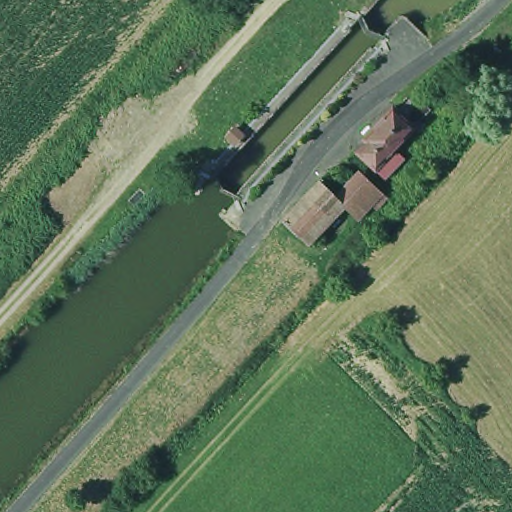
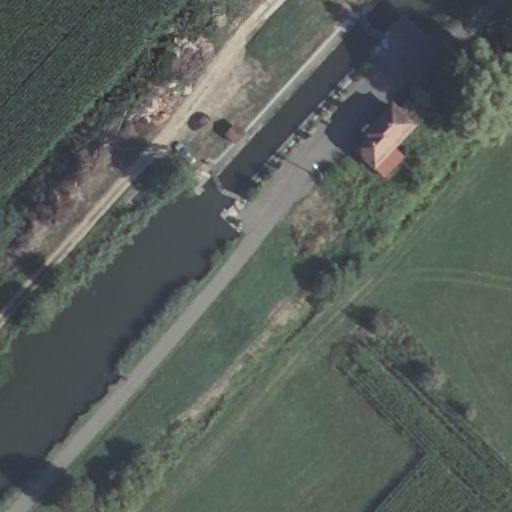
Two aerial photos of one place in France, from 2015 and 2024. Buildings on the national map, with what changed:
unchanged [(401,160),(390,172),(393,174),(384,183),(355,156),(364,147),(361,143),(392,111),(397,116),(414,97),(430,112),(421,123),(425,128),(417,136),(413,131),(394,153),(401,160)]
unchanged [(356,194),(368,181),(383,194),(389,200),(378,212),(372,206),(358,222),(343,207),(356,194)]
unchanged [(321,187),(343,207),(308,246),(287,225),(321,187)]

